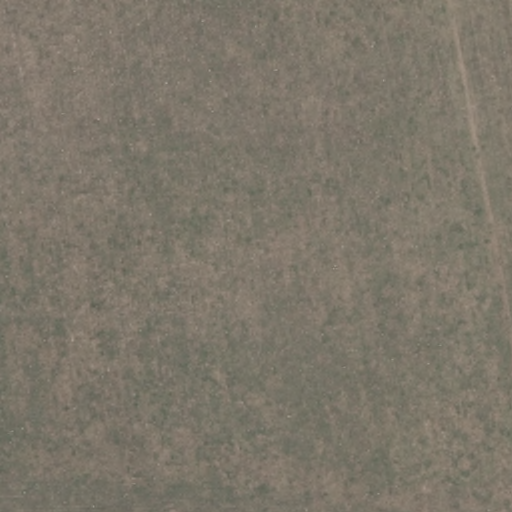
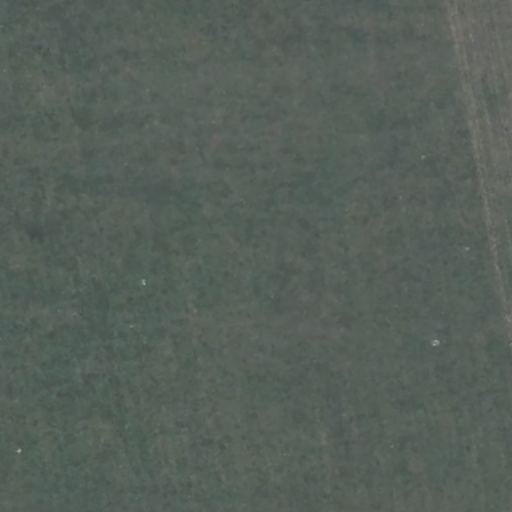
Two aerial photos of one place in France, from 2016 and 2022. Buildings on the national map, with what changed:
[]

